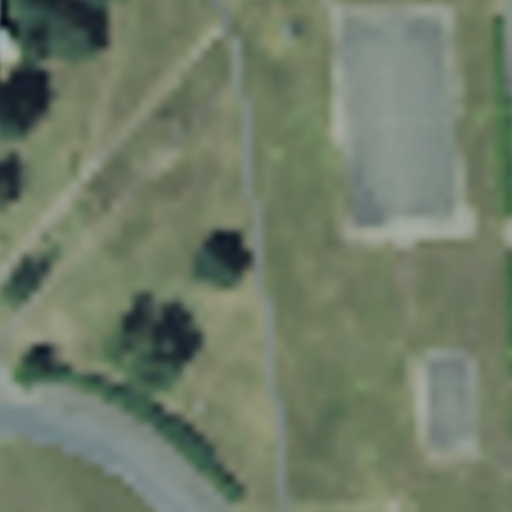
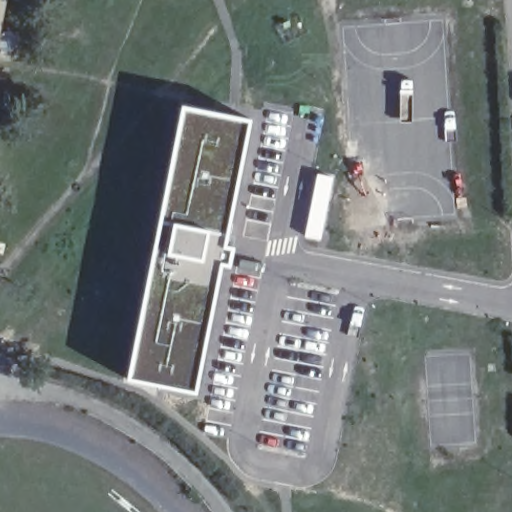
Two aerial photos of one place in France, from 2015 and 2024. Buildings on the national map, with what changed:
unchanged [(0,24),(0,0),(5,0),(0,24)]
new [(192,397),(120,382),(175,110),(242,124),(192,397)]

